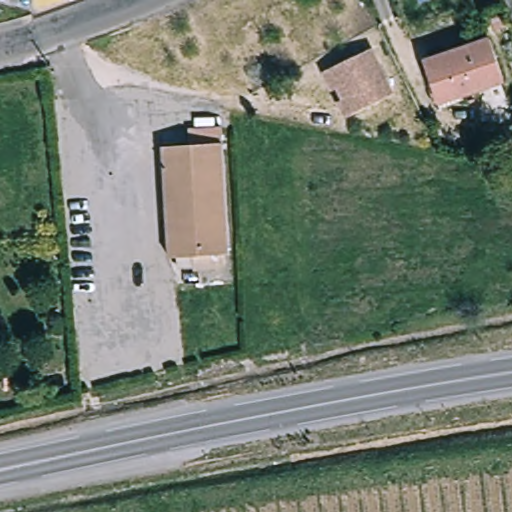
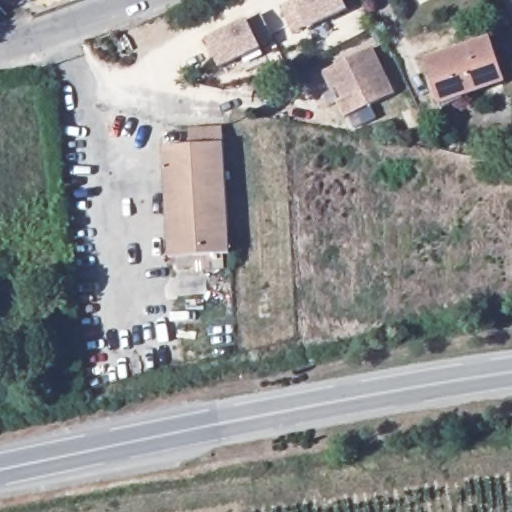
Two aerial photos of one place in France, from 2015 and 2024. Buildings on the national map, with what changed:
new [(295,0),(343,0),(347,9),(309,29),(294,35),(280,8),(293,1),(295,0)]
unchanged [(507,10),(512,20),(495,30),(490,20),(507,10)]
new [(260,12),(274,40),(261,48),(222,68),(207,40),(247,19),(260,12)]
unchanged [(494,39),(509,81),(468,95),(470,99),(447,109),(446,107),(444,102),(432,60),(494,39)]
unchanged [(399,93),(349,117),(342,101),(348,99),(342,87),(336,90),(327,72),(333,69),(378,48),(399,93)]
unchanged [(189,145),(189,130),(222,127),(230,254),(170,257),(163,146),(189,145)]

